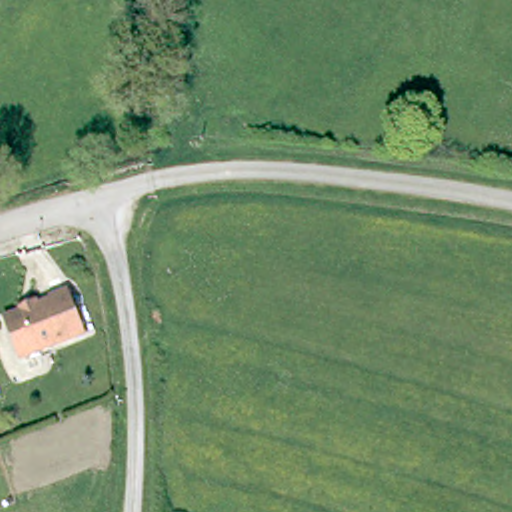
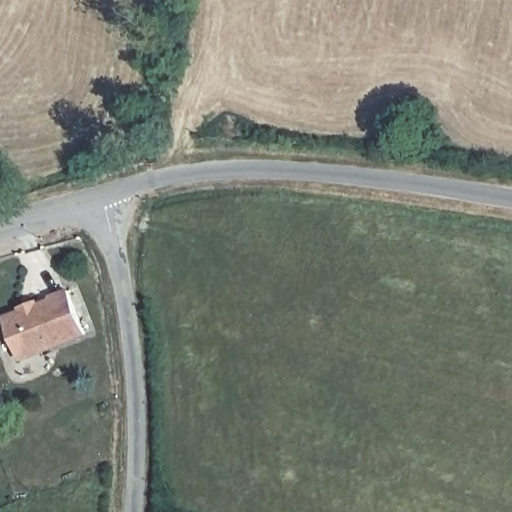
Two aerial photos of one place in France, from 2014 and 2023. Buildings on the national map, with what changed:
unchanged [(86,336),(20,362),(5,320),(71,293),(86,336)]

